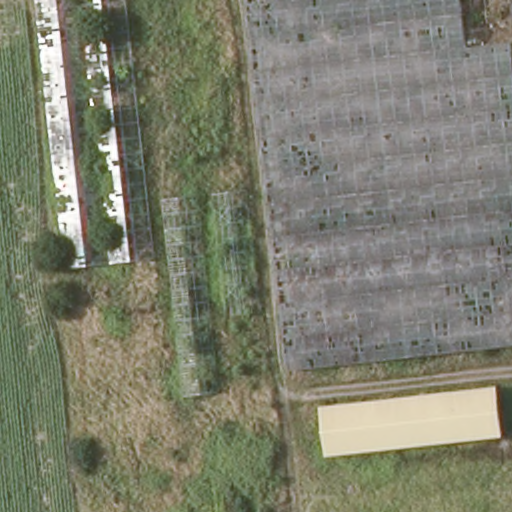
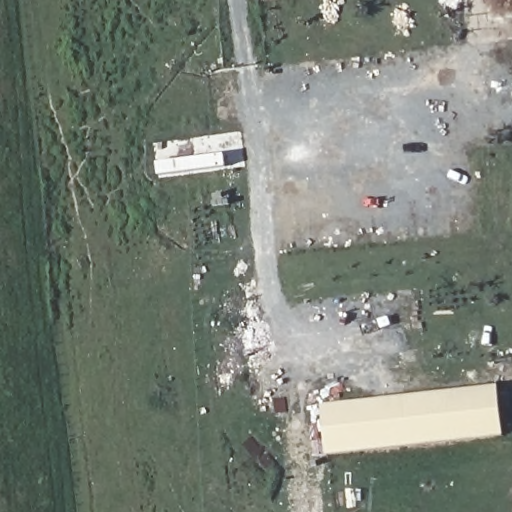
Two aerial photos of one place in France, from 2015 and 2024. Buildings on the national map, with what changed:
demolished [(272,389),(185,396),(165,262),(67,277),(36,0),(132,0),(156,199),(247,192),(272,389)]
demolished [(246,0),(467,0),(472,47),(512,42),(512,348),(291,374),(246,0)]
unchanged [(331,458),(325,405),(503,383),(510,440),(331,458)]

